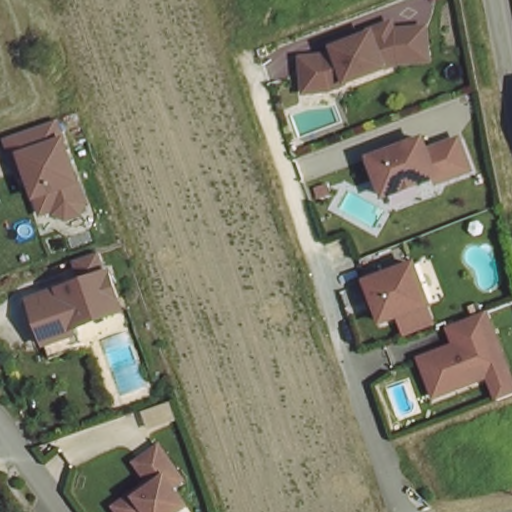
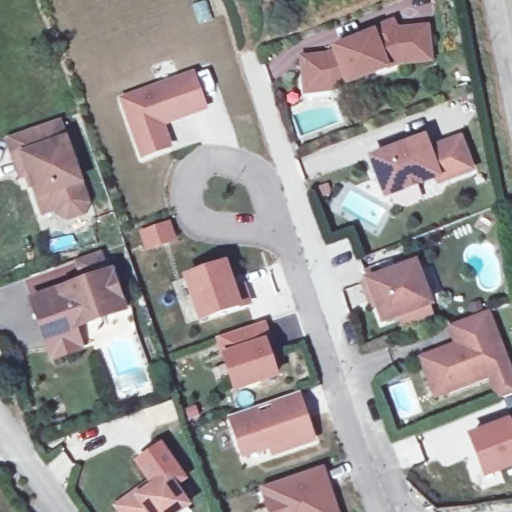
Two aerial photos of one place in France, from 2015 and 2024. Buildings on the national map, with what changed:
unchanged [(296,56),(320,55),(331,49),(331,51),(340,47),(337,41),(364,31),(364,27),(385,22),(388,30),(419,27),(422,59),(392,62),(341,81),(338,75),(323,81),(324,88),(299,91),(296,56)]
new [(198,74),(210,107),(166,122),(174,146),(149,155),(129,99),(198,74)]
unchanged [(56,214),(52,201),(33,209),(5,136),(57,116),(86,200),(56,214)]
unchanged [(381,195),(366,153),(420,132),(422,139),(457,129),(471,166),(381,195)]
unchanged [(94,245),(101,265),(103,264),(118,303),(68,322),(75,342),(47,352),(25,293),(76,275),(68,254),(94,245)]
unchanged [(377,318),(365,277),(417,260),(430,305),(377,318)]
new [(230,263),(238,289),(248,286),(254,302),(206,318),(192,276),(230,263)]
unchanged [(512,378),(512,387),(489,395),(482,372),(429,392),(415,352),(450,338),(445,325),(489,308),(512,378)]
new [(268,322),(275,342),(270,343),(281,375),(241,388),(224,337),(268,322)]
new [(301,395),(317,445),(269,458),(267,451),(240,460),(227,418),(301,395)]
new [(506,418),(512,436),(512,460),(478,472),(465,433),(506,418)]
unchanged [(132,460),(155,442),(179,476),(170,482),(183,501),(168,512),(117,512),(112,503),(146,478),(132,460)]
new [(333,487),(341,512),(275,512),(271,500),(266,485),(271,483),(321,466),(329,489),(333,487)]

